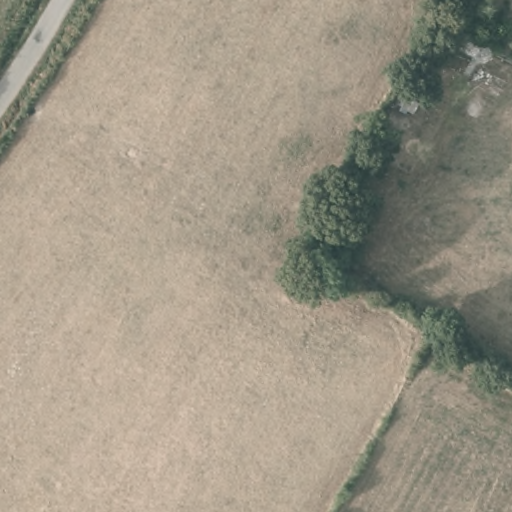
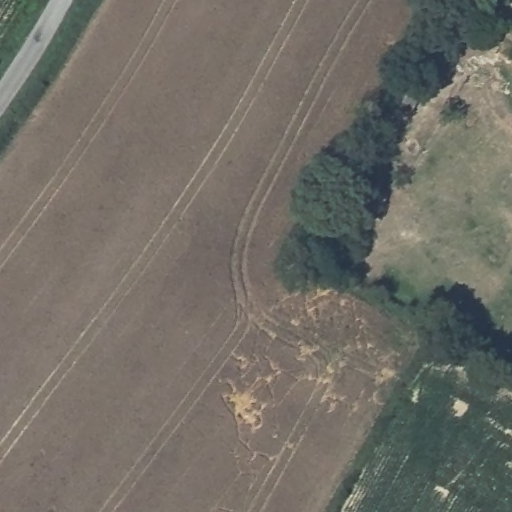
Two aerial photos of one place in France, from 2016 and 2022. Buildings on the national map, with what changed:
[]

